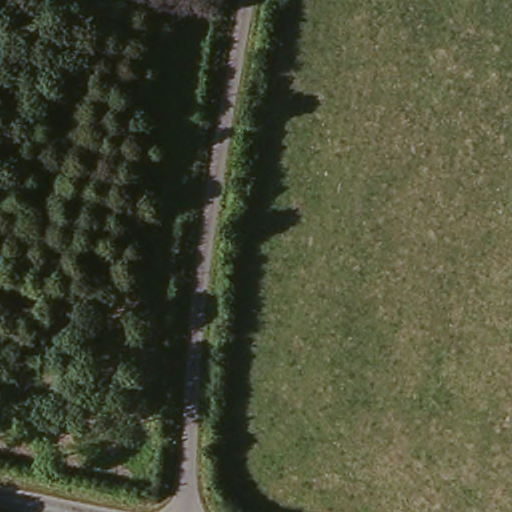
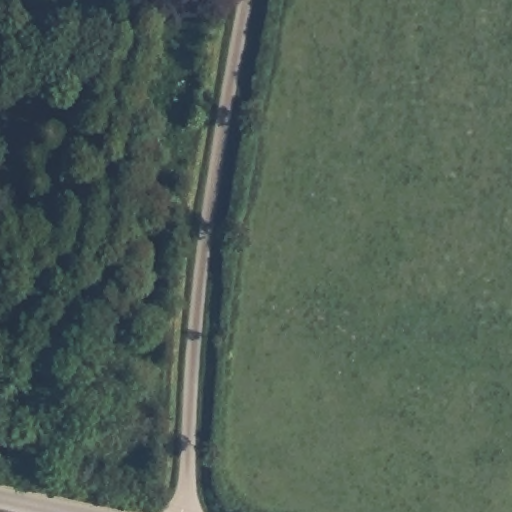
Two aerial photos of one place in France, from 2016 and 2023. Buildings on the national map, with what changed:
[]

